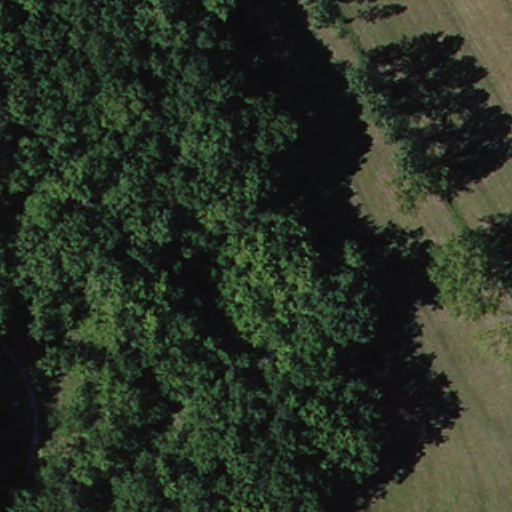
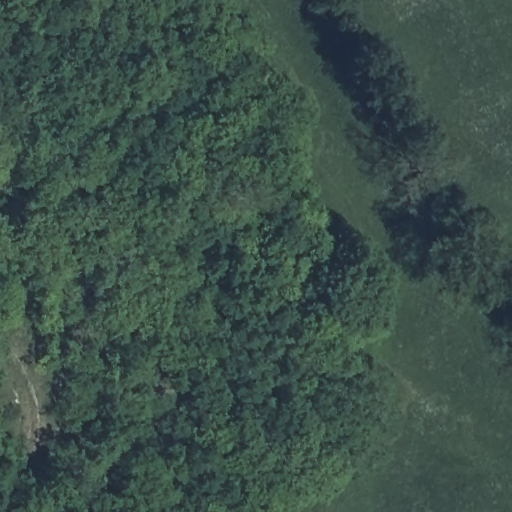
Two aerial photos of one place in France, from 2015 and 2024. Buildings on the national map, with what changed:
[]

